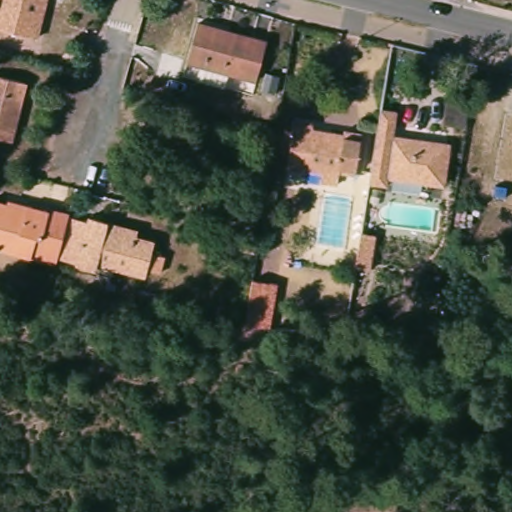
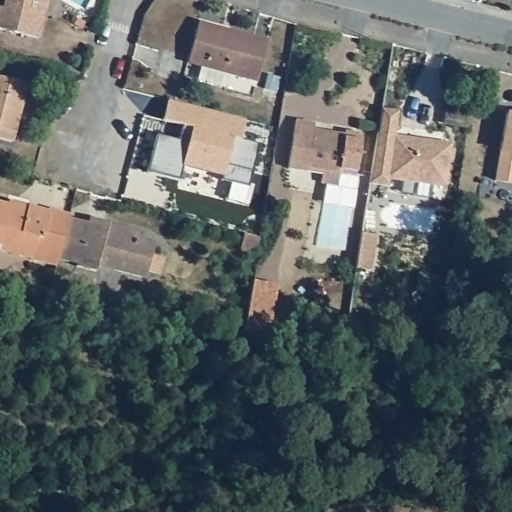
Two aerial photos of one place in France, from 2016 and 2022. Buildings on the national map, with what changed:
unchanged [(0,28),(0,6),(3,6),(5,0),(46,0),(41,16),(36,37),(0,28)]
unchanged [(266,40),(256,79),(186,60),(197,21),(266,40)]
unchanged [(25,81),(10,140),(0,138),(0,75),(25,81)]
new [(156,133),(178,138),(180,123),(162,119),(168,99),(244,119),(240,138),(259,143),(247,185),(220,180),(221,174),(182,164),(179,179),(148,170),(156,133)]
unchanged [(463,144),(457,183),(402,175),(401,184),(383,181),(391,130),(395,107),(412,110),(408,136),(463,144)]
new [(512,113),(512,182),(494,178),(505,112),(512,113)]
unchanged [(313,122),(312,128),(343,133),(345,129),(361,131),(355,174),(339,172),(337,185),(319,182),(321,170),(305,167),(305,171),(286,168),(295,119),(313,122)]
unchanged [(25,208),(26,204),(46,210),(47,207),(69,213),(68,216),(56,258),(55,264),(0,249),(0,201),(25,208)]
unchanged [(87,216),(107,221),(136,229),(135,235),(154,240),(151,252),(165,255),(160,273),(147,270),(145,277),(96,264),(95,270),(75,265),(76,263),(56,258),(68,216),(86,220),(87,216)]
unchanged [(373,232),(368,267),(355,265),(360,230),(373,232)]
unchanged [(258,236),(255,252),(240,249),(245,232),(258,236)]
unchanged [(277,283),(269,329),(247,328),(251,279),(277,283)]
unchanged [(438,298),(432,333),(412,329),(418,295),(438,298)]

